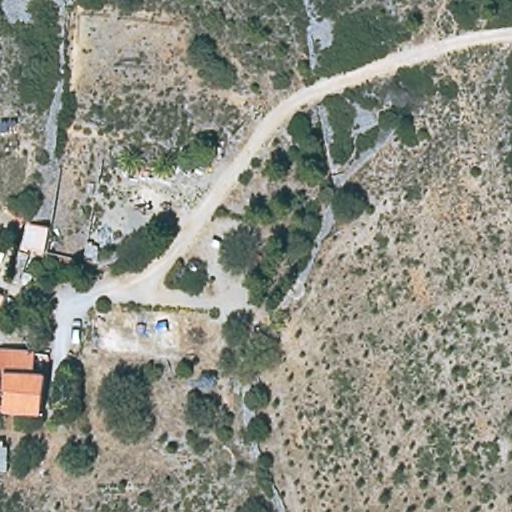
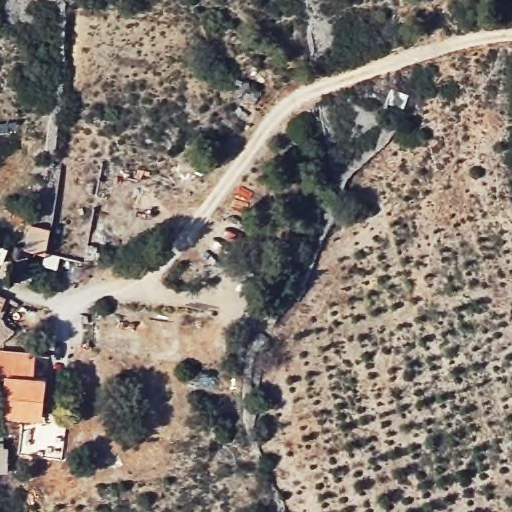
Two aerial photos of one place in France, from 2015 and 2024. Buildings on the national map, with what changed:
unchanged [(50,229),(44,255),(24,249),(30,225),(50,229)]
unchanged [(5,297),(0,310),(0,295),(5,297)]
unchanged [(5,375),(0,374),(0,348),(34,350),(34,375),(47,377),(45,414),(4,410),(5,375)]

